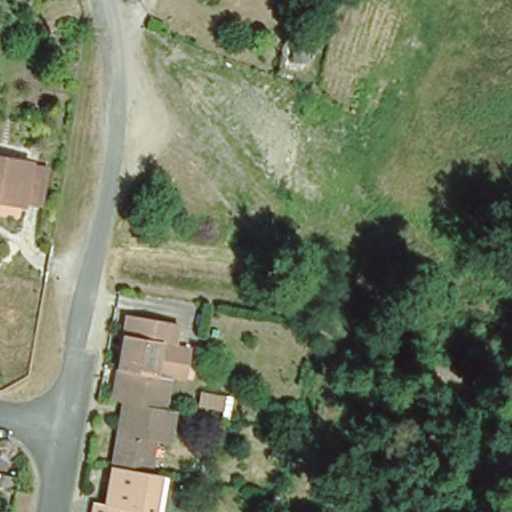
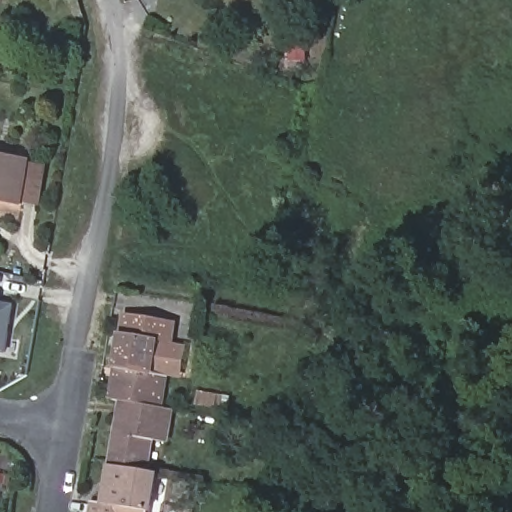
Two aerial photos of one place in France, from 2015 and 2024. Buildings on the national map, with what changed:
unchanged [(46,213),(27,209),(0,205),(0,164),(34,169),(53,172),(46,213)]
new [(6,354),(0,353),(0,303),(14,305),(6,354)]
unchanged [(91,512),(91,500),(104,501),(119,403),(108,401),(123,313),(180,322),(178,345),(190,346),(187,379),(174,378),(169,409),(177,410),(173,442),(159,442),(153,472),(162,475),(158,512),(91,512)]
unchanged [(199,398),(224,402),(222,416),(197,413),(199,398)]

